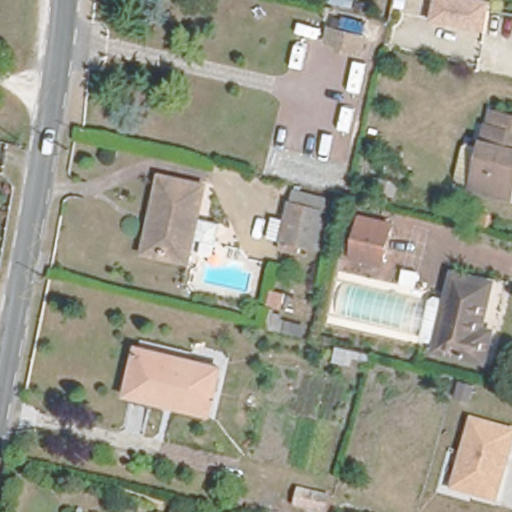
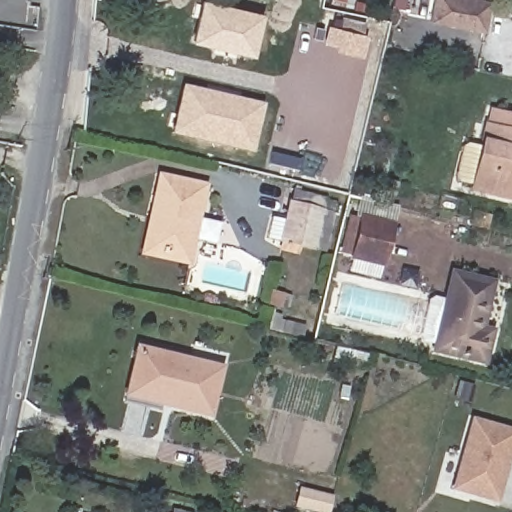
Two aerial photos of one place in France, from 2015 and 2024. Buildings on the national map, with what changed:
unchanged [(432,21),(438,0),(486,0),(492,1),(484,32),(432,21)]
new [(199,1),(258,14),(249,53),(191,40),(199,1)]
unchanged [(340,46),(341,43),(327,40),(330,25),(368,32),(364,52),(340,46)]
new [(264,104),(253,147),(250,150),(170,134),(182,85),(264,104)]
unchanged [(491,114),(496,115),(512,119),(512,185),(508,200),(507,203),(468,194),(469,190),(456,186),(453,180),(460,150),(461,149),(463,148),(466,146),(479,150),(484,129),(487,130),(491,114)]
unchanged [(182,268),(136,257),(155,180),(200,191),(182,268)]
unchanged [(321,217),(291,211),(294,199),(336,210),(325,261),(312,258),(321,217)]
unchanged [(300,256),(299,265),(279,260),(281,251),(268,247),(273,226),(287,229),(291,211),(321,217),(312,258),(300,256)]
unchanged [(385,262),(354,255),(342,252),(352,212),(363,214),(395,221),(385,262)]
unchanged [(471,331),(482,333),(476,362),(428,351),(445,278),(482,287),(471,331)]
unchanged [(285,293),(282,303),(270,300),(273,290),(285,293)]
unchanged [(209,415),(126,395),(140,346),(221,366),(209,415)]
unchanged [(512,457),(499,502),(449,490),(469,415),(512,426),(512,457)]
unchanged [(297,496),(328,503),(326,512),(293,512),(297,496)]

